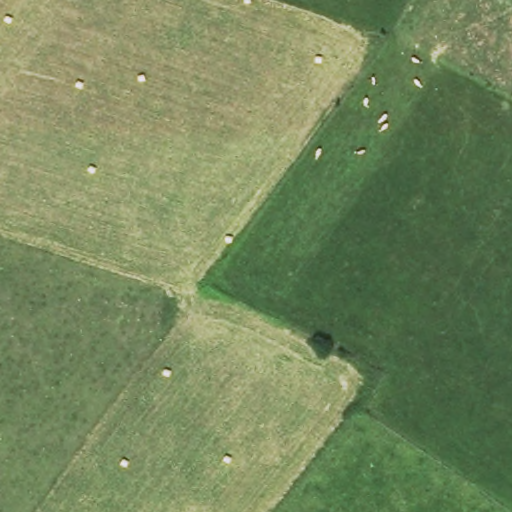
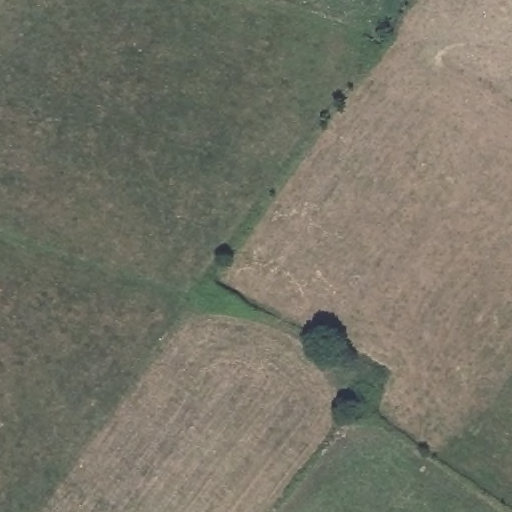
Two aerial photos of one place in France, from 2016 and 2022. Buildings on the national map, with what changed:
[]

